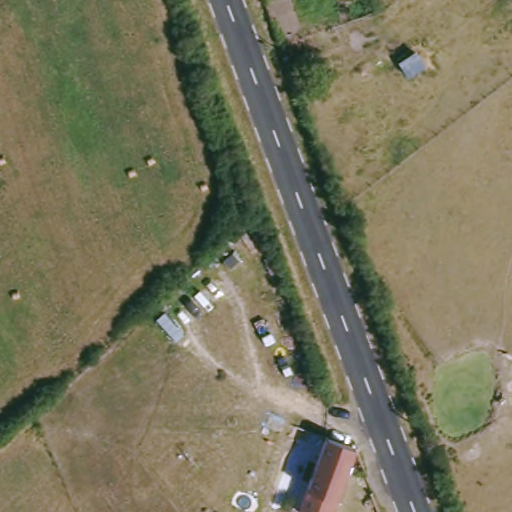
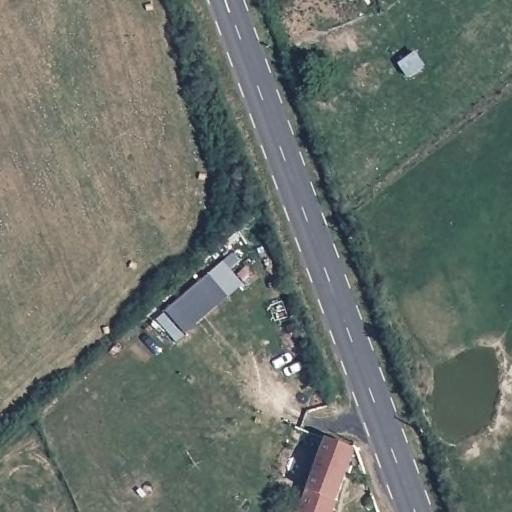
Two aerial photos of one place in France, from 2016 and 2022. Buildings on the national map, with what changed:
new [(209,273),(228,296),(186,332),(167,310),(209,273)]
unchanged [(359,445),(331,512),(301,512),(325,431),(359,445)]

